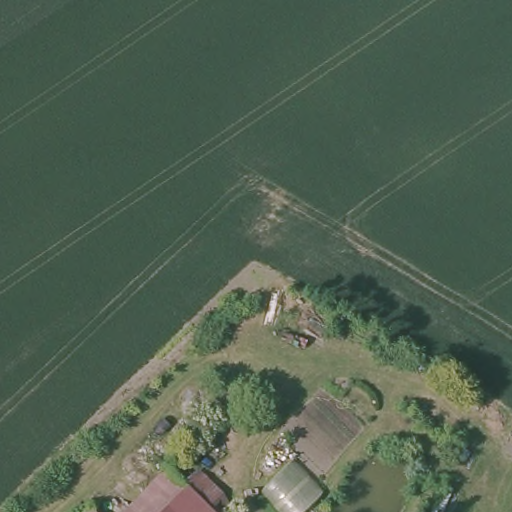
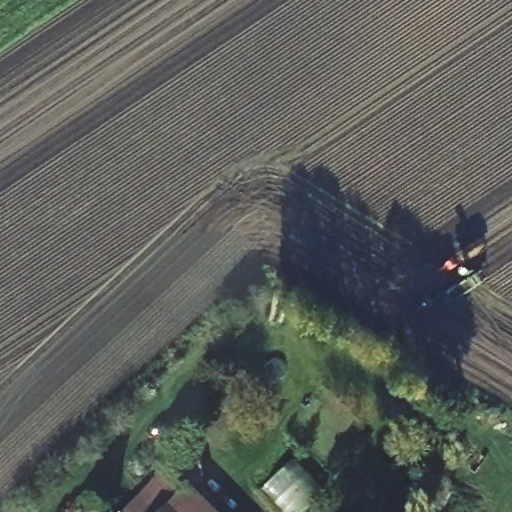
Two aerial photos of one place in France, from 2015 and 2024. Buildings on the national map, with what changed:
unchanged [(256,490),(285,456),(318,491),(293,512),(279,512),(256,490)]
unchanged [(165,467),(205,512),(117,512),(165,467)]
unchanged [(78,510),(80,512),(76,512),(78,510)]

